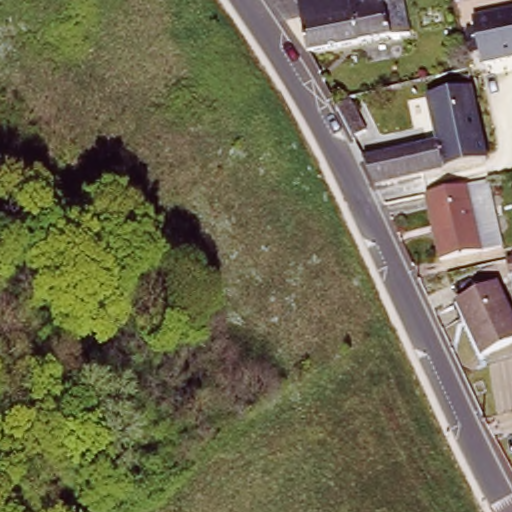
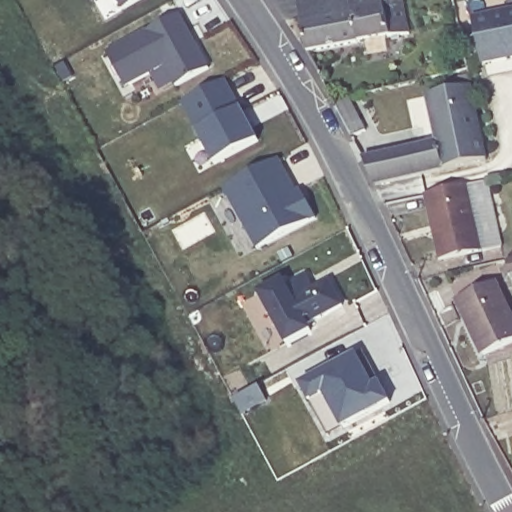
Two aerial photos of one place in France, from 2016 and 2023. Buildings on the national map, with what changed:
new [(122,11),(116,0),(143,0),(122,11)]
unchanged [(304,53),(294,0),(399,0),(407,32),(304,53)]
unchanged [(482,63),(473,19),(512,11),(512,57),(482,63)]
new [(176,88),(165,67),(127,90),(106,53),(179,14),(210,68),(176,88)]
unchanged [(370,186),(358,161),(434,142),(429,120),(422,96),(459,87),(457,77),(465,75),(467,85),(485,160),(402,180),(370,186)]
new [(215,166),(197,133),(179,105),(223,82),(240,108),(258,142),(215,166)]
unchanged [(349,141),(332,106),(346,100),(364,134),(349,141)]
new [(257,251),(225,189),(278,159),(297,193),(300,191),(316,219),(257,251)]
unchanged [(442,261),(426,195),(483,180),(487,179),(504,245),(442,261)]
unchanged [(509,261),(512,261),(512,275),(509,261)]
new [(309,325),(313,333),(287,347),(259,294),(285,280),(289,286),(305,277),(312,290),(329,281),(342,306),(309,325)]
unchanged [(485,355),(458,301),(498,282),(512,313),(512,342),(485,355)]
new [(342,430),(325,396),(310,403),(300,385),(357,354),(374,385),(378,383),(390,403),(342,430)]

